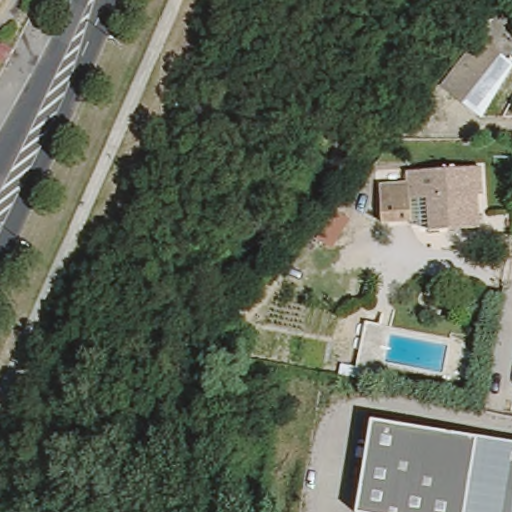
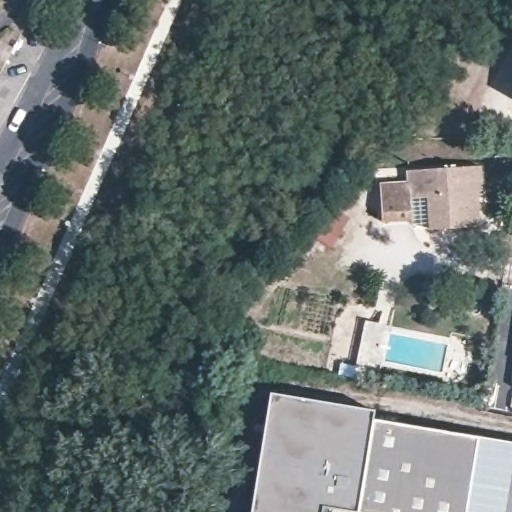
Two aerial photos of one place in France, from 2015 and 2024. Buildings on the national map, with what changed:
demolished [(512,58),(512,64),(482,113),(462,96),(443,81),(481,33),(500,50),(512,58)]
unchanged [(427,231),(425,201),(411,203),(412,227),(378,226),(378,183),(405,182),(405,171),(478,168),(477,226),(427,231)]
unchanged [(493,259),(494,251),(508,253),(507,261),(493,259)]
new [(362,511),(362,512),(359,512),(323,506),(322,512),(252,512),(269,394),(378,411),(377,418),(362,511)]
unchanged [(442,512),(368,512),(362,511),(377,418),(456,430),(442,512)]
unchanged [(456,430),(512,439),(512,512),(442,512),(456,430)]

